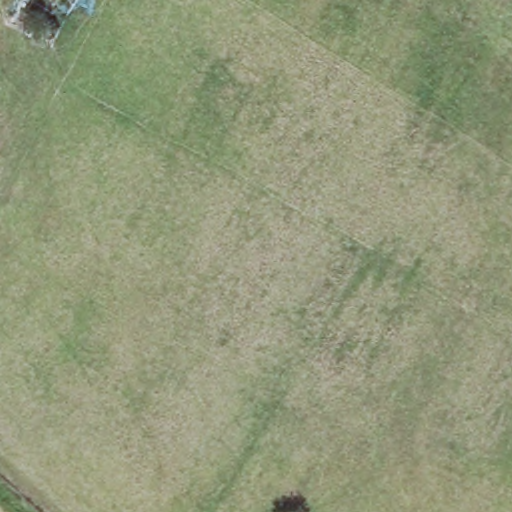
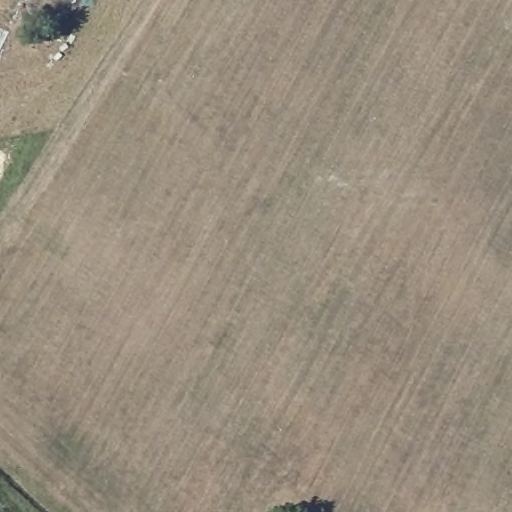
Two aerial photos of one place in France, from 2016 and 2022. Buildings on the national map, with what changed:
unchanged [(51,47),(19,27),(35,0),(80,0),(51,47)]

